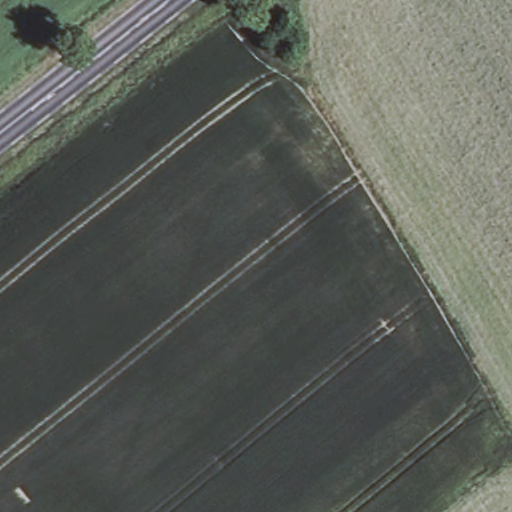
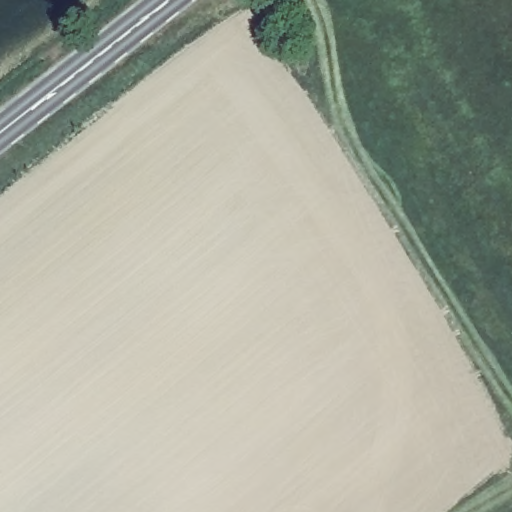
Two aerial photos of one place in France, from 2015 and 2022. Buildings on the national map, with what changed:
unchanged [(270,40),(275,36),(285,30),(295,45),(285,52),(280,55),(270,40)]

